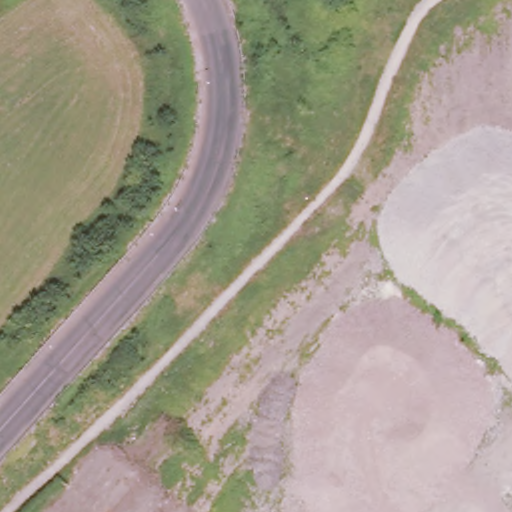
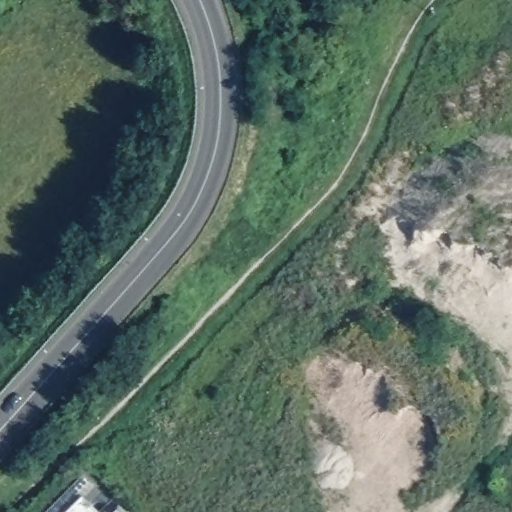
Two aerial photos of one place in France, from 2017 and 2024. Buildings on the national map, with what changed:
new [(72,512),(86,497),(100,512),(72,512)]

